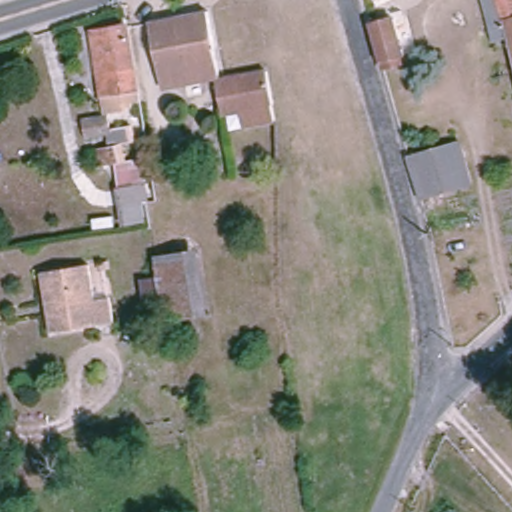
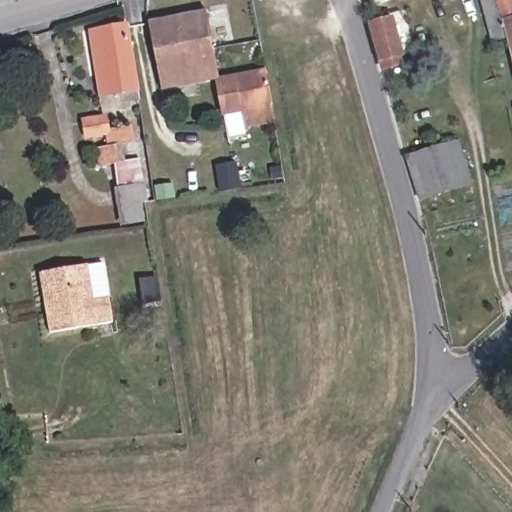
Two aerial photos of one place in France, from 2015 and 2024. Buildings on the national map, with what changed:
unchanged [(484,4),(496,1),(496,0),(512,0),(512,65),(504,34),(492,37),(484,4)]
unchanged [(276,107),(277,120),(250,125),(245,107),(224,113),(217,77),(162,87),(148,25),(208,11),(220,81),(268,70),(276,107)]
unchanged [(391,12),(399,58),(382,62),(371,19),(391,12)]
unchanged [(115,167),(95,167),(93,149),(107,146),(105,134),(84,136),(84,116),(103,115),(86,28),(129,22),(142,97),(118,102),(118,110),(109,114),(111,127),(133,125),(134,144),(119,147),(121,160),(140,157),(144,181),(140,182),(145,219),(122,226),(115,167)]
unchanged [(409,156),(461,142),(472,186),(420,199),(409,156)]
demolished [(164,306),(160,281),(155,255),(181,250),(198,246),(212,313),(167,322),(164,306)]
unchanged [(91,265),(99,303),(110,300),(114,323),(49,337),(37,277),(91,265)]
unchanged [(148,308),(142,282),(160,281),(164,306),(148,308)]

